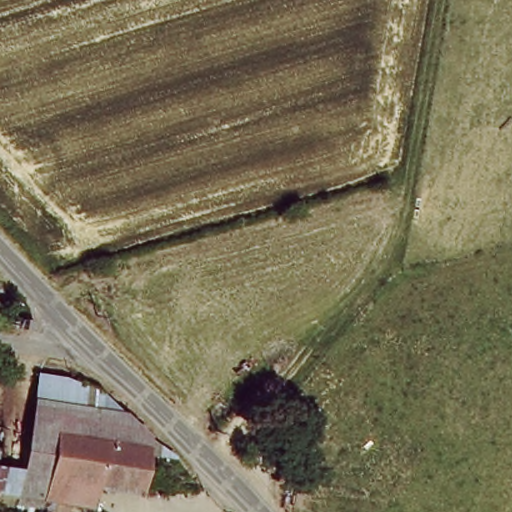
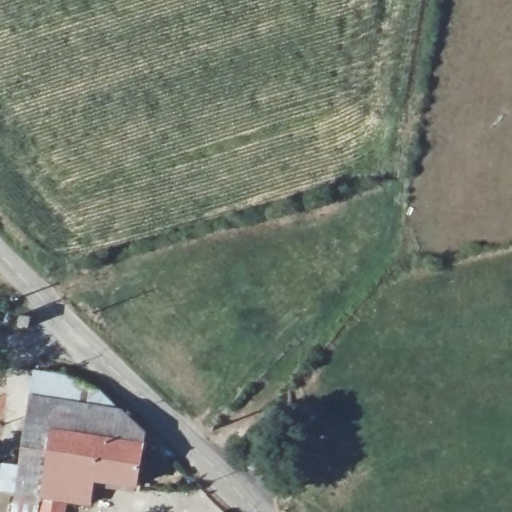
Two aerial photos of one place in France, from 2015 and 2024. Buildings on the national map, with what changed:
unchanged [(98,378),(150,427),(142,487),(100,483),(97,510),(72,507),(71,512),(6,512),(34,361),(98,378)]

